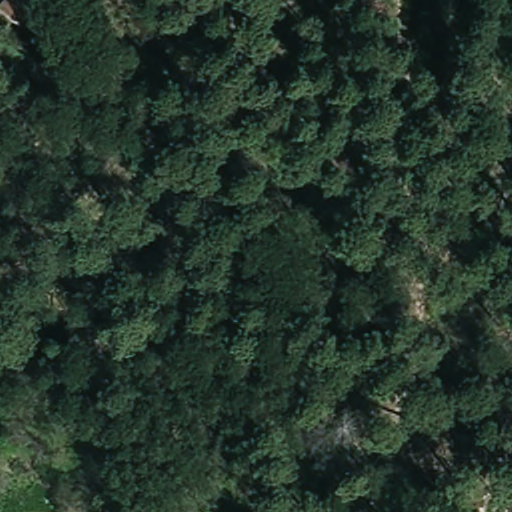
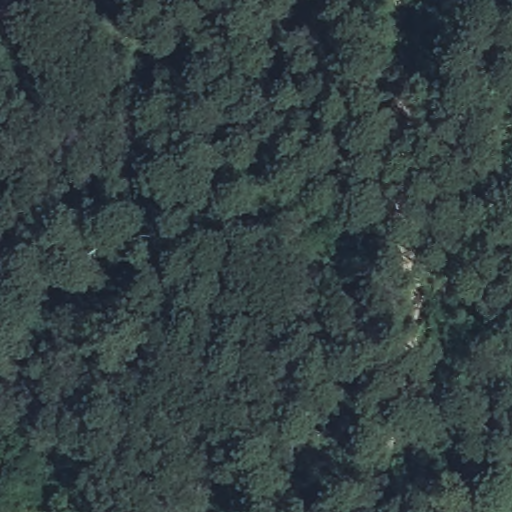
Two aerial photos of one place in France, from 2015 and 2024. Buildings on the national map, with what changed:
unchanged [(11,0),(58,0),(25,32),(2,12),(11,0)]
unchanged [(81,0),(87,0),(86,3),(81,0)]

